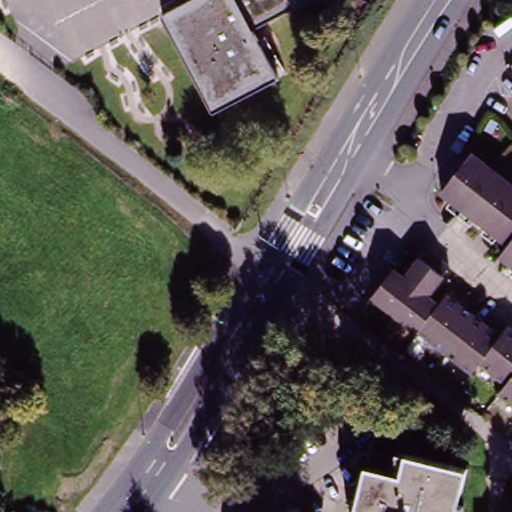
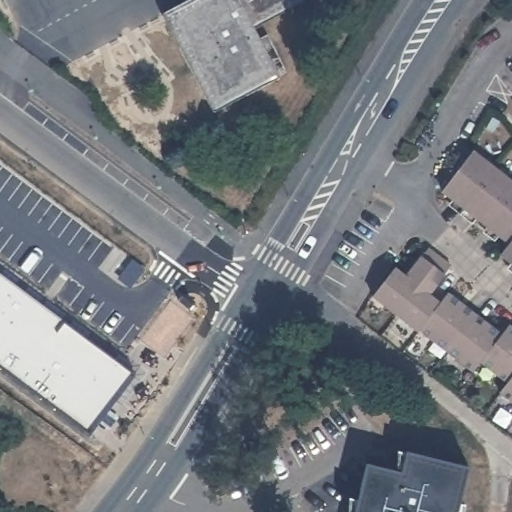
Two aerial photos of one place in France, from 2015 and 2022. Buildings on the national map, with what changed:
unchanged [(192,0),(239,0),(255,30),(281,79),(215,114),(162,16),(192,0)]
unchanged [(255,30),(239,0),(311,0),(255,30)]
unchanged [(466,210),(443,191),(473,153),(497,170),(466,210)]
unchanged [(488,227),(466,210),(497,170),(512,182),(512,196),(488,227)]
unchanged [(511,245),(488,227),(512,196),(512,243),(511,245)]
unchanged [(502,255),(511,245),(512,243),(512,263),(502,255)]
unchanged [(392,315),(369,298),(392,269),(403,278),(425,250),(436,258),(392,315)]
unchanged [(416,331),(415,333),(392,315),(436,258),(447,268),(426,296),(437,304),(416,331)]
new [(0,312),(0,274),(19,287),(0,312)]
new [(40,304),(12,342),(0,333),(0,312),(19,287),(40,304)]
unchanged [(442,352),(416,331),(437,304),(441,298),(468,320),(442,352)]
new [(40,304),(64,321),(19,382),(0,368),(0,357),(12,342),(40,304)]
unchanged [(477,363),(470,373),(442,352),(468,320),(495,340),(477,363)]
new [(64,321),(91,341),(46,401),(19,382),(64,321)]
unchanged [(505,327),(512,332),(512,374),(505,384),(477,363),(495,340),(505,327)]
new [(0,357),(0,333),(12,342),(0,357)]
new [(91,341),(136,375),(91,435),(46,401),(91,341)]
unchanged [(497,394),(505,384),(512,374),(512,405),(497,394)]
unchanged [(402,475),(408,455),(468,470),(458,512),(357,512),(368,467),(402,475)]

